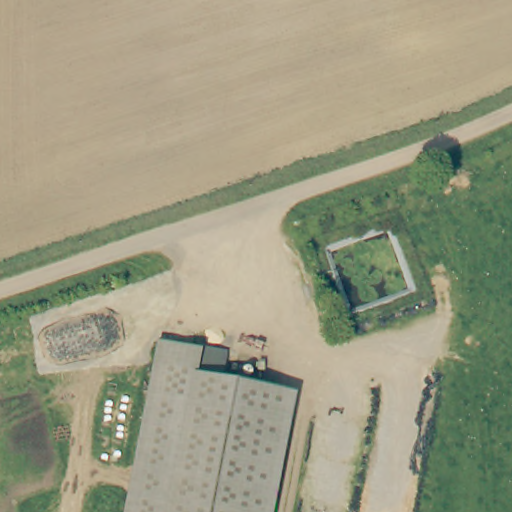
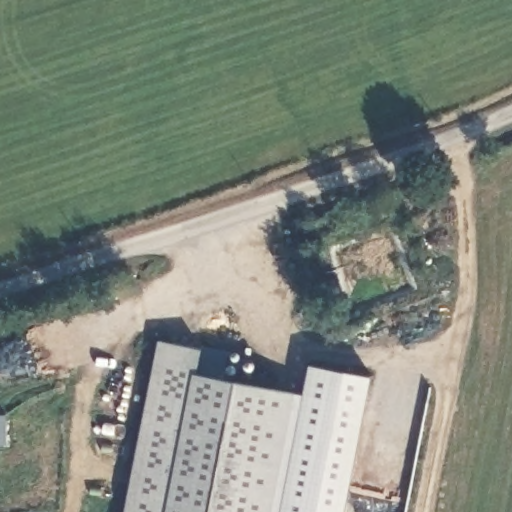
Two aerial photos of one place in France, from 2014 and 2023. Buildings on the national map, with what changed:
unchanged [(198,350),(194,375),(274,388),(264,449),(253,512),(127,512),(132,488),(157,342),(198,350)]
new [(345,512),(253,512),(264,449),(274,388),(303,395),(309,364),(373,376),(345,512)]

